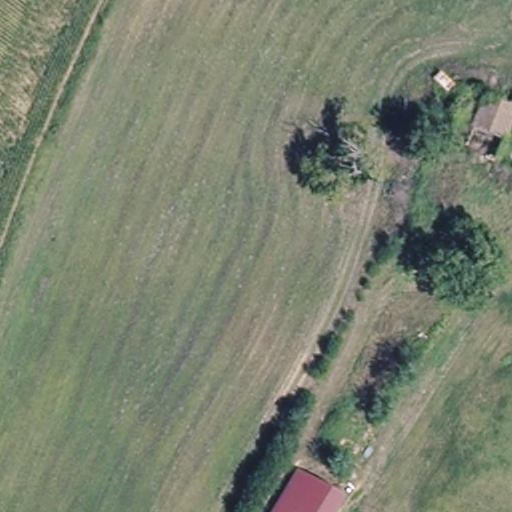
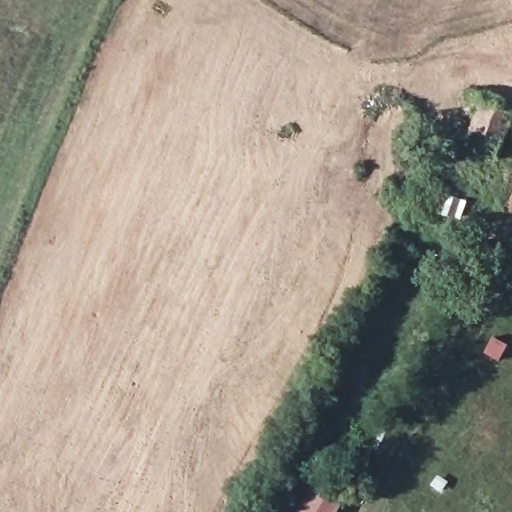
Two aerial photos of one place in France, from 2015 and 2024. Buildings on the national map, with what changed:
unchanged [(512,109),(512,159),(510,164),(467,148),(486,99),(512,109)]
unchanged [(330,493),(319,512),(276,512),(283,499),(298,473),(301,474),(330,493)]
unchanged [(344,499),(337,512),(319,512),(330,493),(344,499)]

